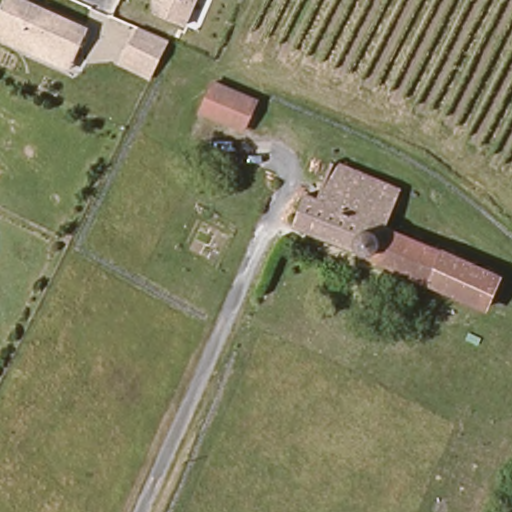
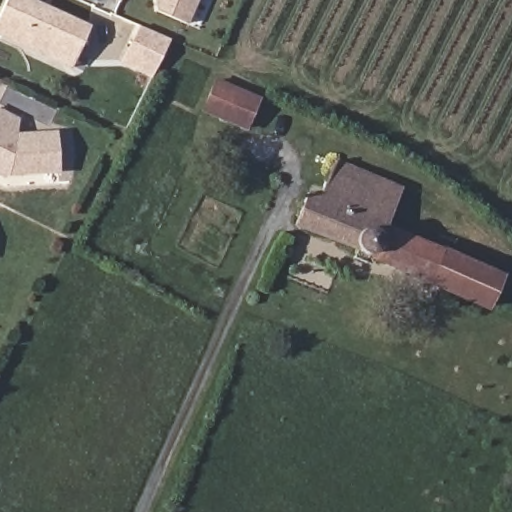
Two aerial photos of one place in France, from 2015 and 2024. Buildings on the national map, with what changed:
unchanged [(35,0),(87,23),(69,64),(0,34),(0,3),(2,0),(35,0)]
unchanged [(156,8),(156,0),(194,0),(185,20),(156,8)]
unchanged [(168,35),(149,72),(120,58),(138,21),(168,35)]
unchanged [(250,124),(207,106),(218,75),(262,94),(250,124)]
new [(0,110),(20,119),(15,132),(17,133),(56,130),(60,173),(9,176),(0,172),(0,110)]
unchanged [(298,226),(308,199),(325,204),(340,164),(406,191),(393,228),(504,276),(493,308),(298,226)]

